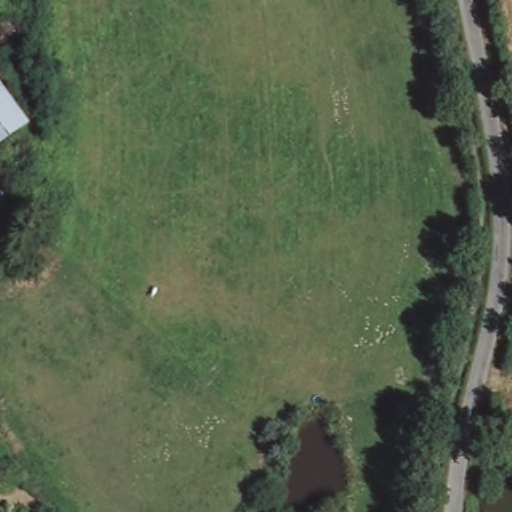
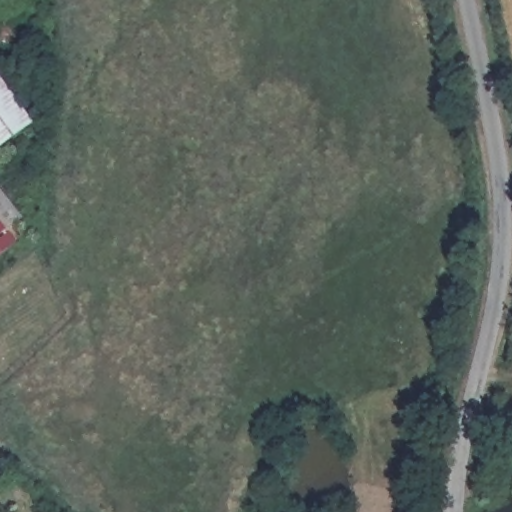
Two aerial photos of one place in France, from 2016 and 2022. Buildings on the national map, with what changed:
unchanged [(36,125),(1,153),(0,152),(0,76),(36,125)]
unchanged [(21,247),(0,262),(0,184),(29,223),(14,236),(21,247)]

